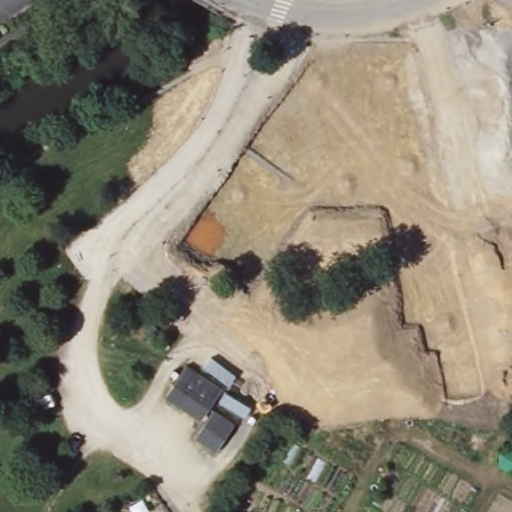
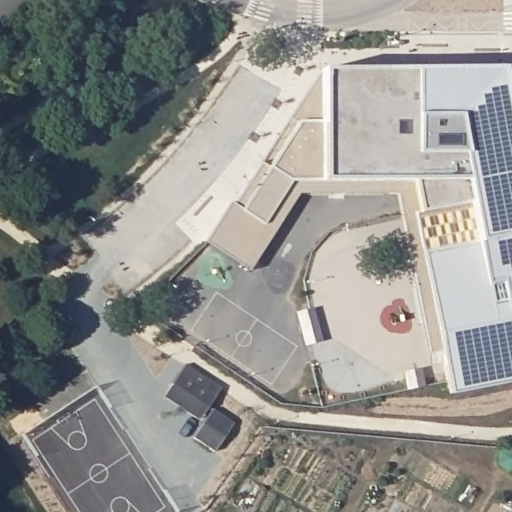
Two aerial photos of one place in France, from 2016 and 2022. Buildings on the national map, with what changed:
new [(230,202),(233,204),(319,68),(501,68),(512,124),(512,385),(449,397),(439,349),(430,352),(399,184),(299,193),(251,269),(206,241),(230,202)]
new [(319,316),(328,350),(311,354),(302,321),(319,316)]
unchanged [(222,390),(211,411),(233,425),(213,455),(189,441),(199,424),(159,400),(179,364),(222,390)]

